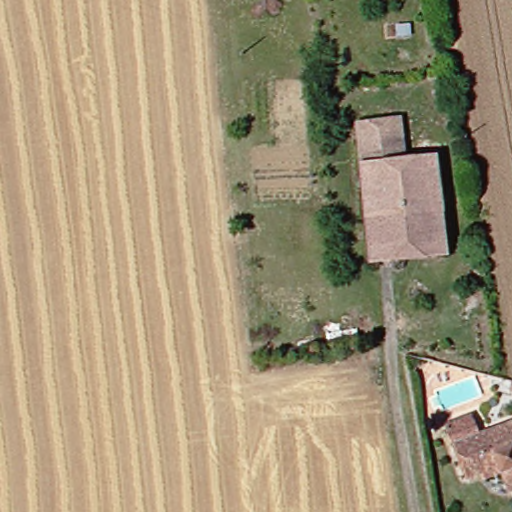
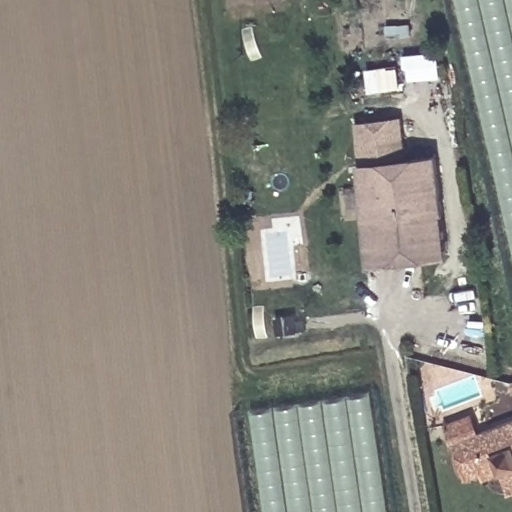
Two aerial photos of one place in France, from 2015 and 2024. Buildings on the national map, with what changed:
new [(512,0),(512,245),(459,0),(512,0)]
unchanged [(375,222),(361,121),(406,116),(412,158),(445,156),(451,212),(375,222)]
unchanged [(375,222),(451,212),(455,251),(378,265),(375,222)]
new [(252,412),(370,392),(388,512),(268,512),(252,412)]
unchanged [(470,480),(455,443),(449,426),(477,417),(484,432),(512,421),(512,474),(489,484),(485,475),(470,480)]

